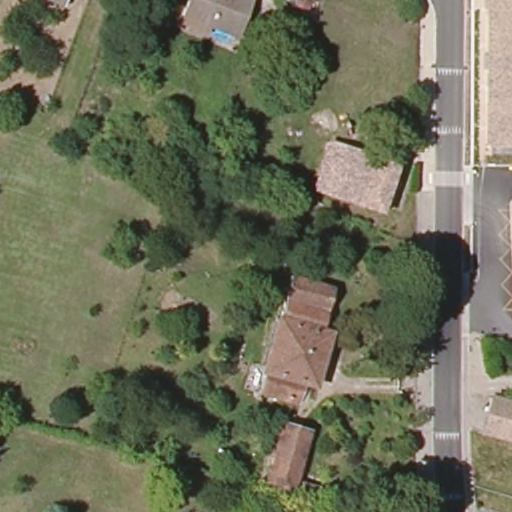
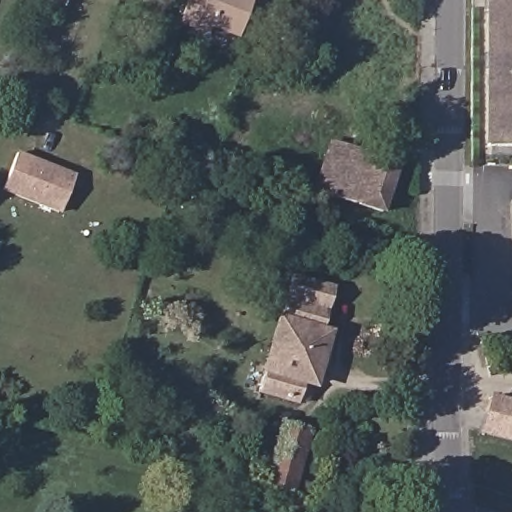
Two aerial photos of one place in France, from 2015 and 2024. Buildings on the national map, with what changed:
unchanged [(63,6),(47,0),(65,0),(63,6)]
unchanged [(179,22),(182,14),(188,0),(251,0),(237,35),(210,25),(207,33),(179,22)]
unchanged [(485,0),(512,0),(512,141),(487,141),(485,0)]
unchanged [(401,160),(385,211),(338,195),(356,145),(401,160)]
new [(61,214),(1,191),(16,151),(76,174),(61,214)]
unchanged [(285,273),(323,284),(311,327),(320,329),(307,380),(299,378),(293,399),(253,388),(285,273)]
unchanged [(481,392),(512,400),(512,439),(471,428),(481,392)]
unchanged [(276,417),(300,424),(288,471),(304,475),(302,483),(261,473),(276,417)]

